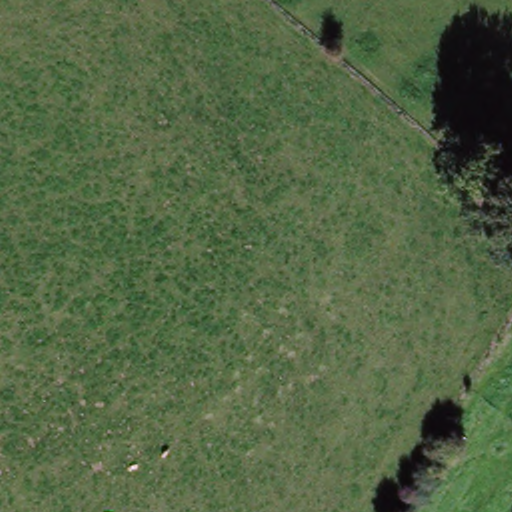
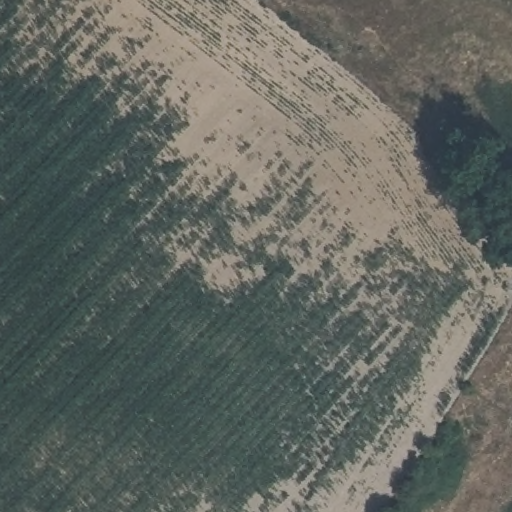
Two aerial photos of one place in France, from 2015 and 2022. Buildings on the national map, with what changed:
[]

